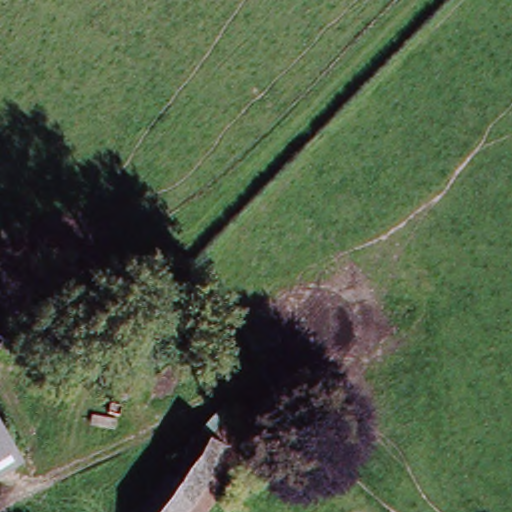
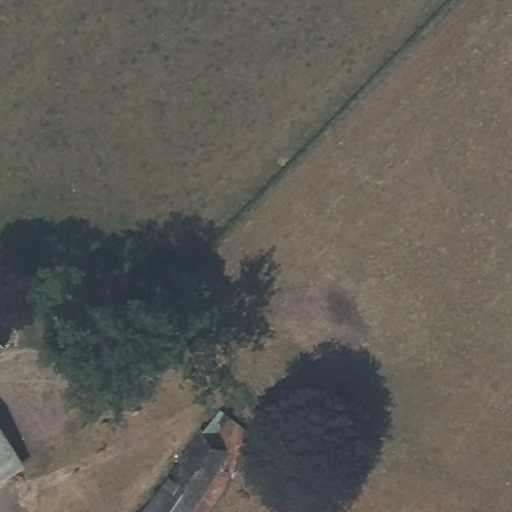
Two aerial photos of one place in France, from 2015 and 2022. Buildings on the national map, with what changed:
unchanged [(0,347),(0,331),(7,338),(0,347)]
unchanged [(252,441),(203,512),(147,512),(217,414),(252,441)]
unchanged [(0,462),(0,432),(14,453),(0,462)]

